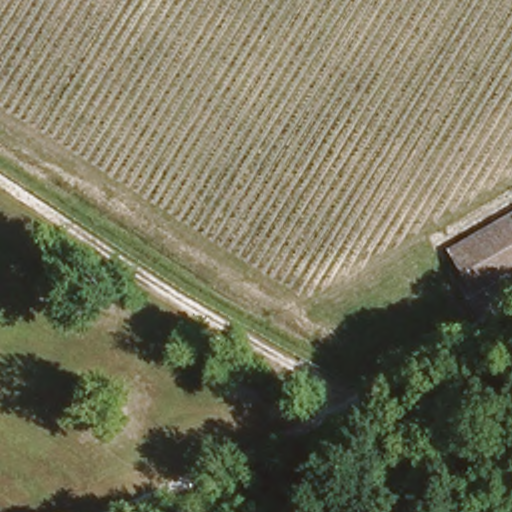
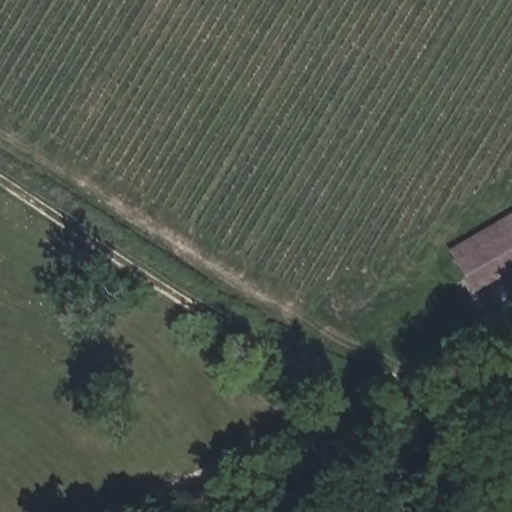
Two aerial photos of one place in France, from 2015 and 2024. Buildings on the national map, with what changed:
unchanged [(472,289),(449,254),(512,214),(512,264),(472,289)]

